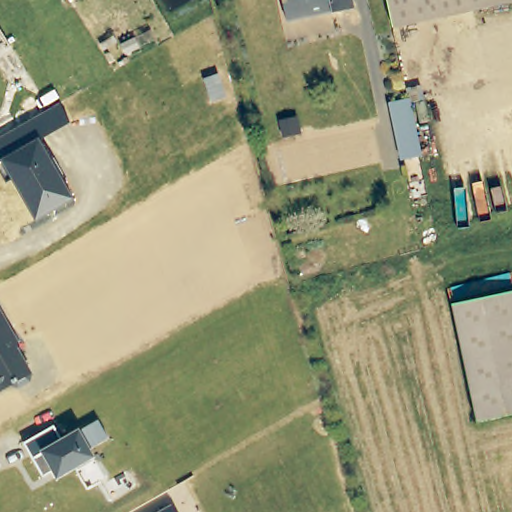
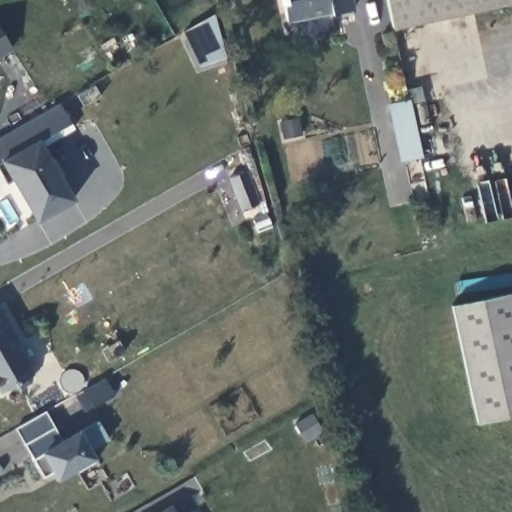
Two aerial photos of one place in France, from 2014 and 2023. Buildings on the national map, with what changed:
unchanged [(329,14),(328,11),(282,22),(277,0),(346,0),(348,10),(329,14)]
unchanged [(390,27),(384,0),(512,0),(390,27)]
new [(226,56),(199,67),(183,31),(213,14),(226,56)]
unchanged [(0,57),(0,30),(12,50),(0,57)]
unchanged [(13,182),(6,186),(0,175),(0,139),(60,106),(70,124),(41,142),(74,200),(36,222),(13,182)]
unchanged [(419,157),(399,162),(389,119),(409,114),(419,157)]
unchanged [(478,426),(452,307),(512,293),(512,418),(478,426)]
unchanged [(17,348),(33,375),(30,384),(20,390),(10,388),(1,394),(0,392),(0,309),(21,345),(17,348)]
unchanged [(53,427),(60,440),(96,421),(107,440),(90,449),(94,458),(56,479),(51,473),(42,477),(24,444),(53,427)]
unchanged [(175,512),(149,512),(168,501),(175,512)]

